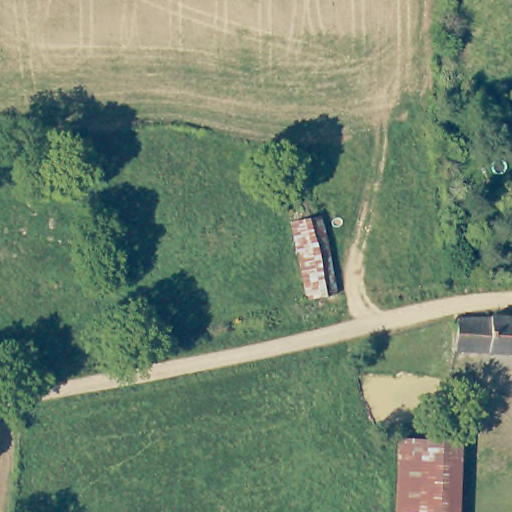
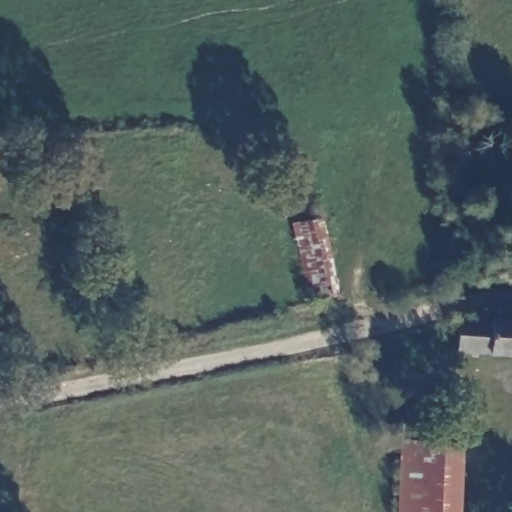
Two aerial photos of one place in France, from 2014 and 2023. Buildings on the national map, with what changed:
unchanged [(339,294),(309,300),(292,222),(322,216),(339,294)]
unchanged [(512,319),(512,354),(457,352),(460,318),(512,319)]
unchanged [(461,512),(397,512),(401,427),(462,430),(461,512)]

